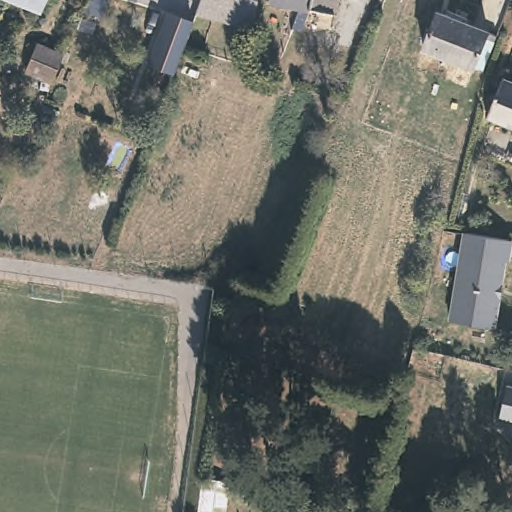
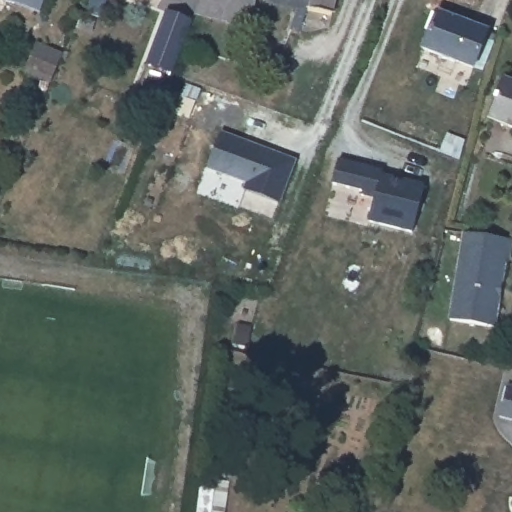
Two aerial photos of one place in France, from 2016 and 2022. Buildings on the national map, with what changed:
unchanged [(38,9),(11,0),(42,0),(38,9)]
unchanged [(255,36),(190,17),(197,0),(255,0),(255,36)]
unchanged [(334,13),(284,6),(284,0),(336,0),(334,13)]
unchanged [(485,26),(473,59),(421,41),(433,8),(485,26)]
unchanged [(169,75),(144,65),(162,13),(188,23),(169,75)]
unchanged [(58,51),(47,80),(21,70),(33,42),(58,51)]
unchanged [(512,124),(488,115),(503,76),(512,79),(512,124)]
new [(244,190),(248,182),(207,168),(222,132),(296,160),(280,203),(244,190)]
new [(367,221),(374,198),(361,195),(363,191),(332,184),(339,159),(384,171),(383,174),(424,184),(412,233),(367,221)]
unchanged [(510,237),(512,237),(508,257),(505,257),(494,323),(451,316),(465,230),(510,237)]
unchanged [(512,421),(499,418),(506,385),(512,387),(512,421)]

